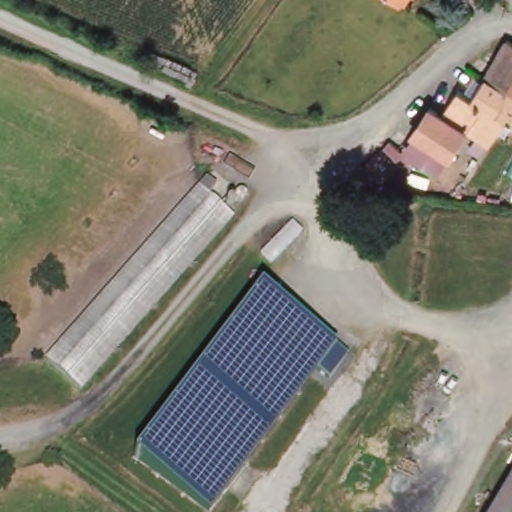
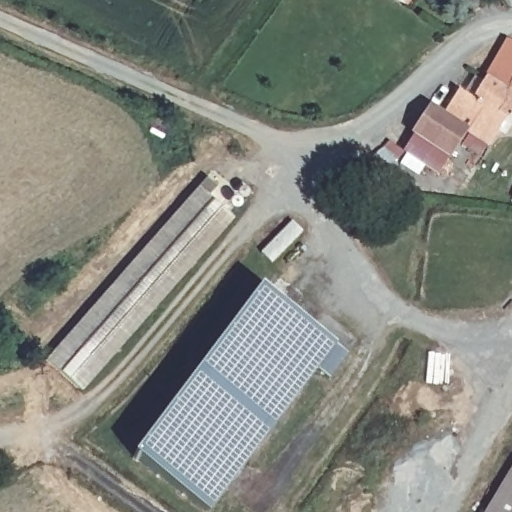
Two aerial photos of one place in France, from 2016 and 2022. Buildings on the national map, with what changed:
unchanged [(411,5),(405,0),(414,0),(411,5)]
unchanged [(489,78),(510,41),(512,42),(512,90),(489,78)]
unchanged [(512,90),(512,117),(510,116),(494,141),(470,128),(446,112),(460,89),(478,97),(489,78),(512,90)]
unchanged [(470,128),(453,155),(412,130),(430,103),(446,112),(470,128)]
unchanged [(453,155),(438,178),(404,155),(418,134),(453,155)]
unchanged [(66,337),(98,300),(126,270),(157,234),(197,187),(231,214),(180,272),(148,311),(114,351),(82,388),(48,358),(66,337)]
unchanged [(333,343),(348,355),(329,381),(315,371),(213,512),(208,512),(129,456),(259,287),(333,343)]
unchanged [(486,512),(512,469),(512,512),(486,512)]

